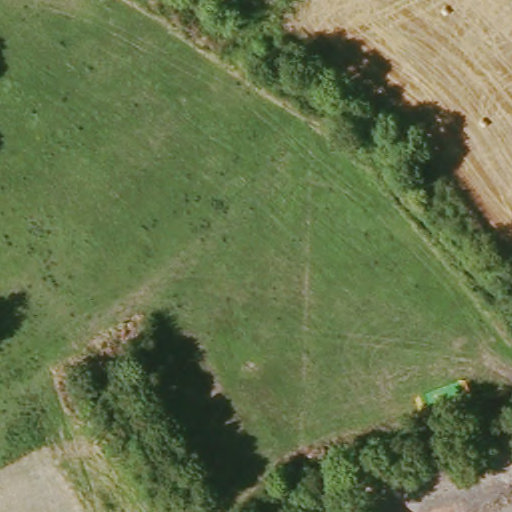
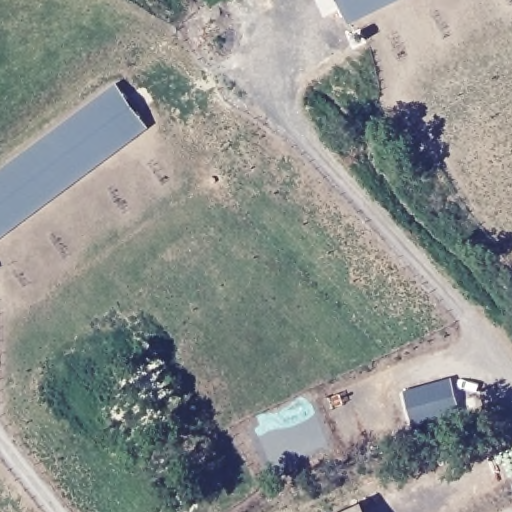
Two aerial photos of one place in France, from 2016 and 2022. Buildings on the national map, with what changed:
new [(337,0),(400,0),(350,25),(337,0)]
new [(150,127),(0,240),(0,170),(115,85),(150,127)]

